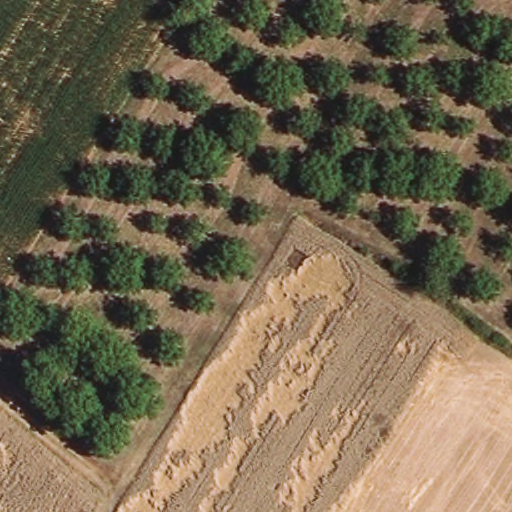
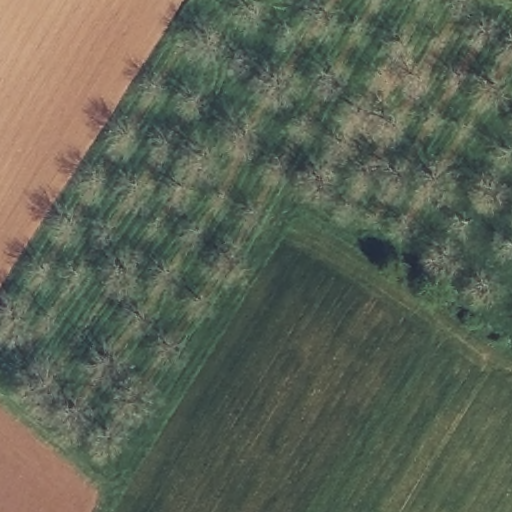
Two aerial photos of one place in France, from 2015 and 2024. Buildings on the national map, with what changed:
[]

